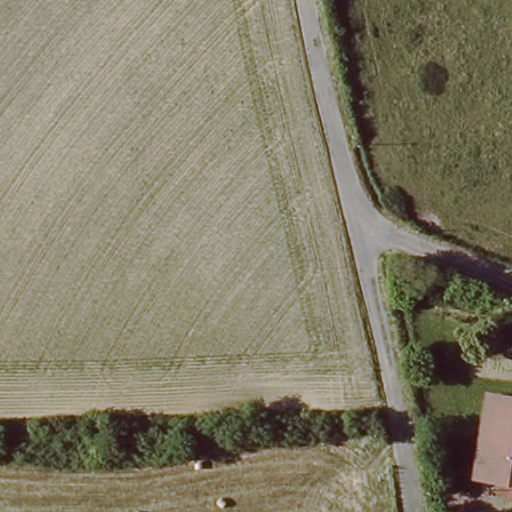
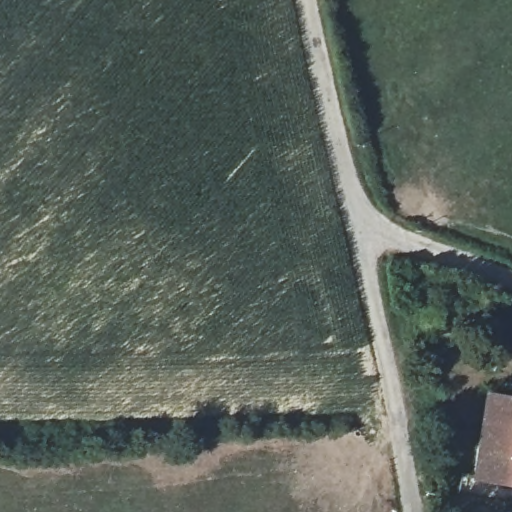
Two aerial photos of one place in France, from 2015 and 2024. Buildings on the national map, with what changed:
unchanged [(467,474),(480,391),(512,396),(512,480),(467,474)]

